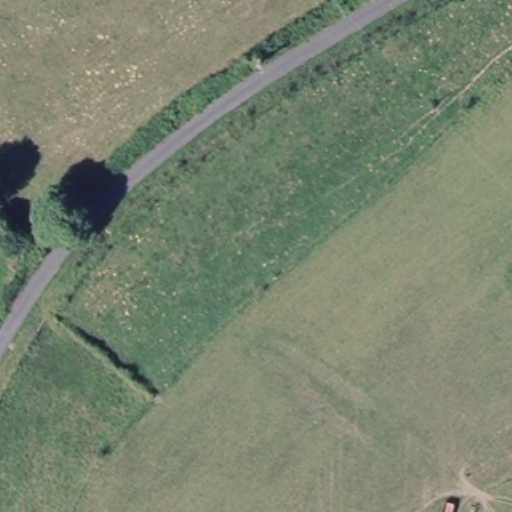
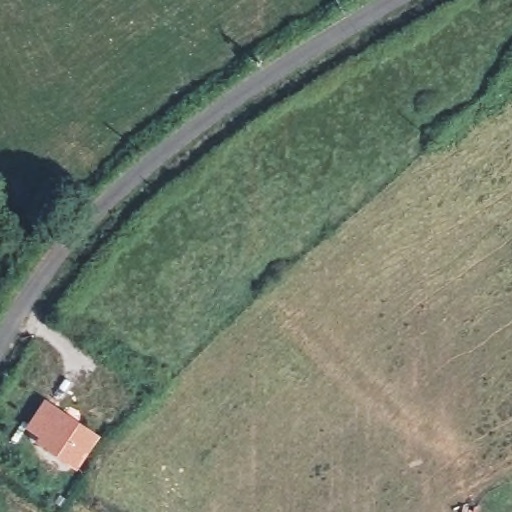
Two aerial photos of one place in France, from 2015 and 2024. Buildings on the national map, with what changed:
new [(44,398),(100,436),(77,470),(33,441),(37,435),(25,427),(44,398)]

